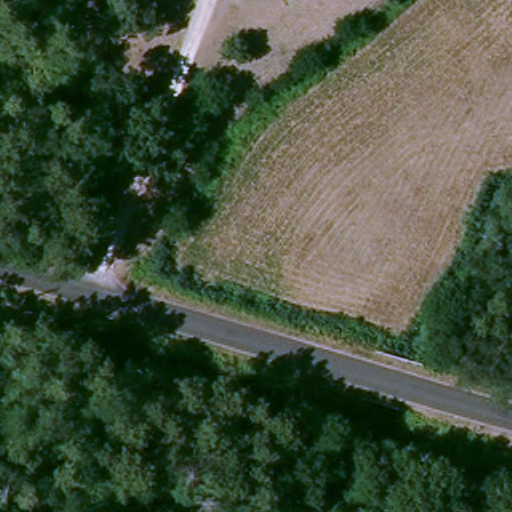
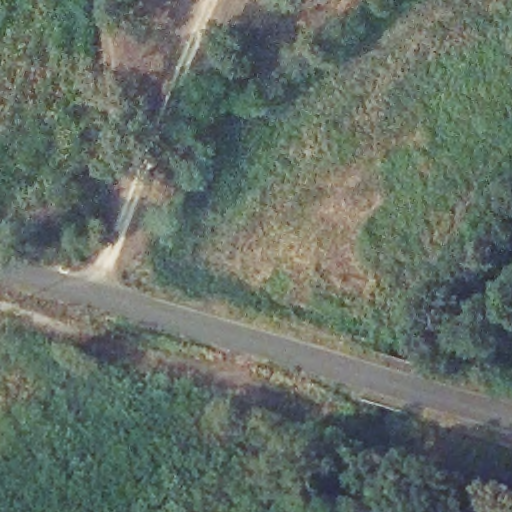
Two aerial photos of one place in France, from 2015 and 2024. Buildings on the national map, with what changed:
[]

